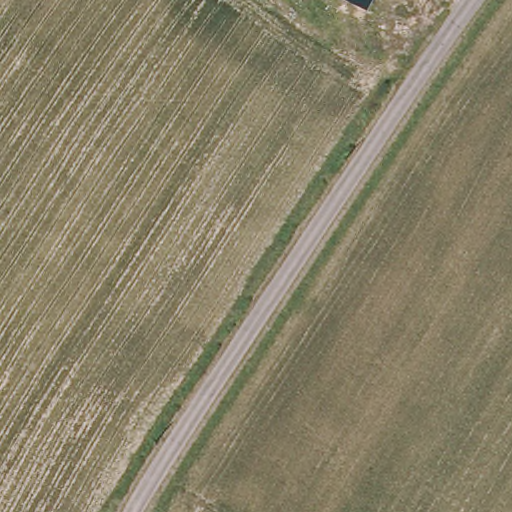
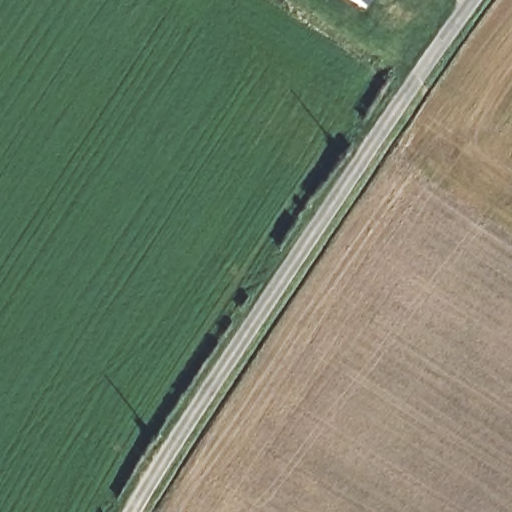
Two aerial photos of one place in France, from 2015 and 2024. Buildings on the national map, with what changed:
unchanged [(367,9),(351,0),(371,0),(367,9)]

